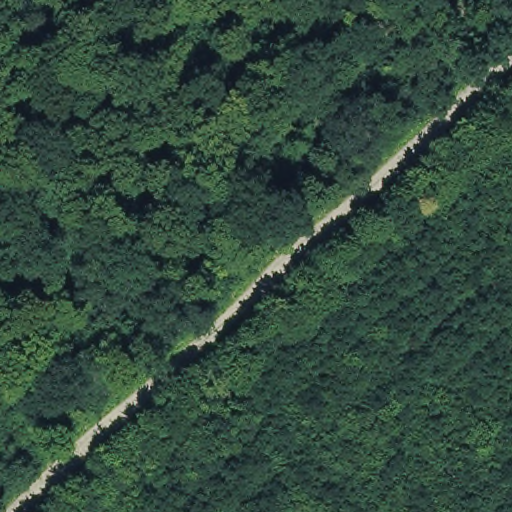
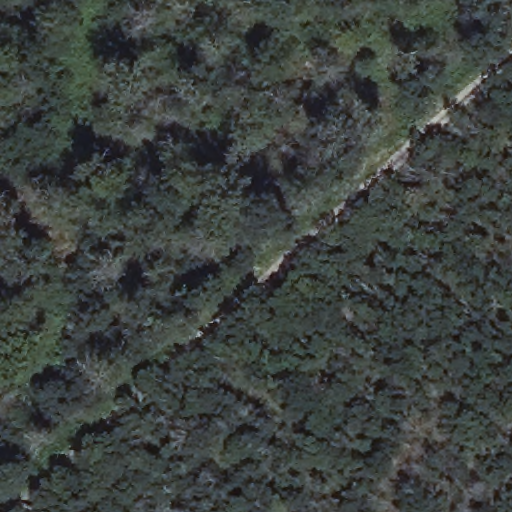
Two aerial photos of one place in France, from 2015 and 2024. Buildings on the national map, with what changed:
[]

